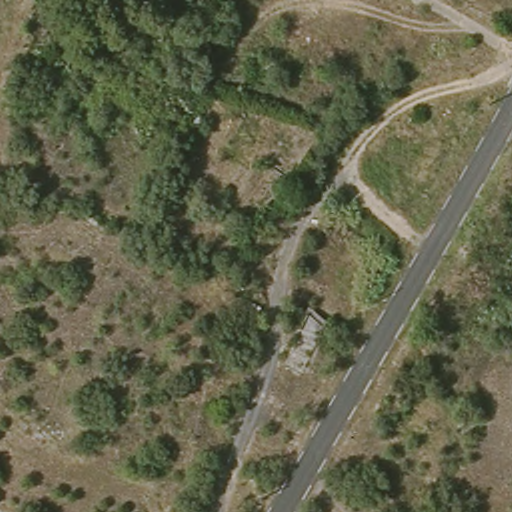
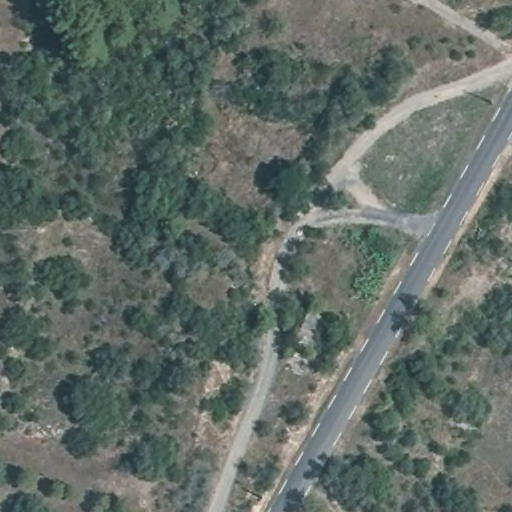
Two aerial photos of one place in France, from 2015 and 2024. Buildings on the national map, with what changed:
[]

